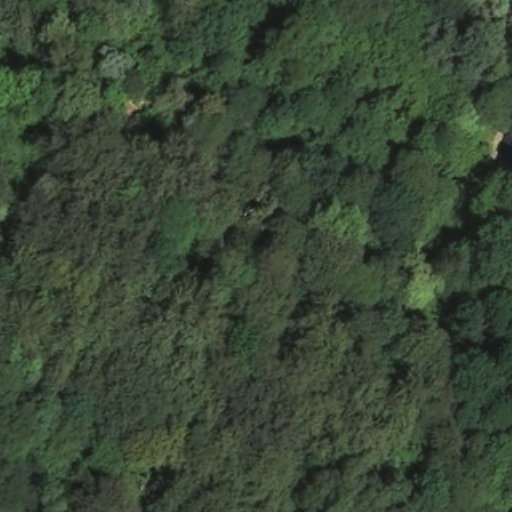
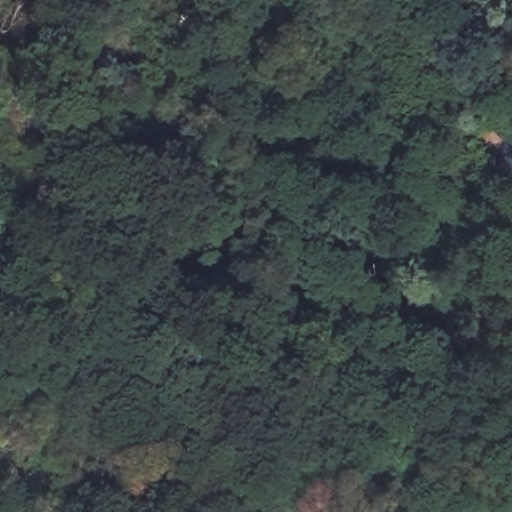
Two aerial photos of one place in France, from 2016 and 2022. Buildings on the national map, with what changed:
unchanged [(512,142),(512,185),(488,177),(502,140),(512,142)]

